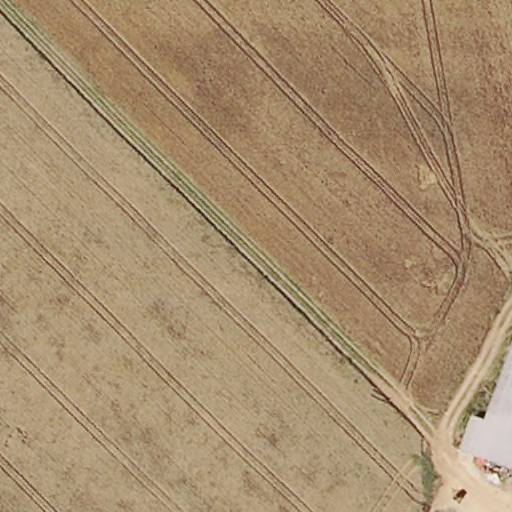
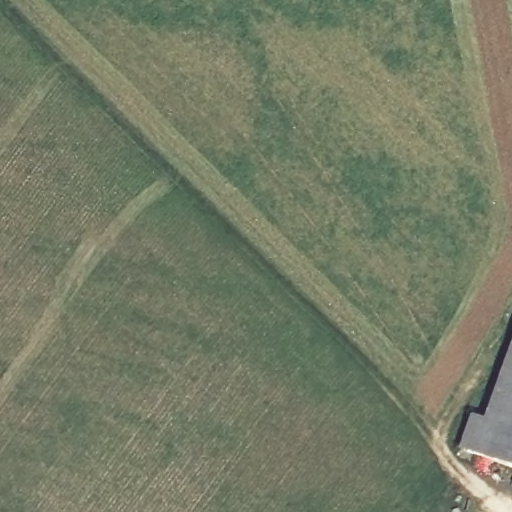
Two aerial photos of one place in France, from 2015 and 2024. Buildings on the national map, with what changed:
unchanged [(482,433),(500,438),(512,400),(512,478),(510,477),(472,464),(477,449),(482,433)]

